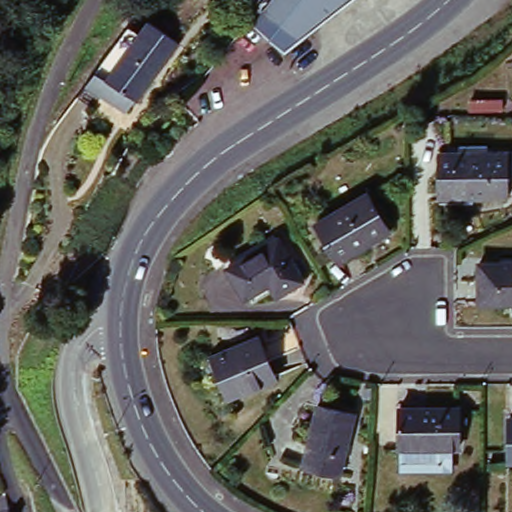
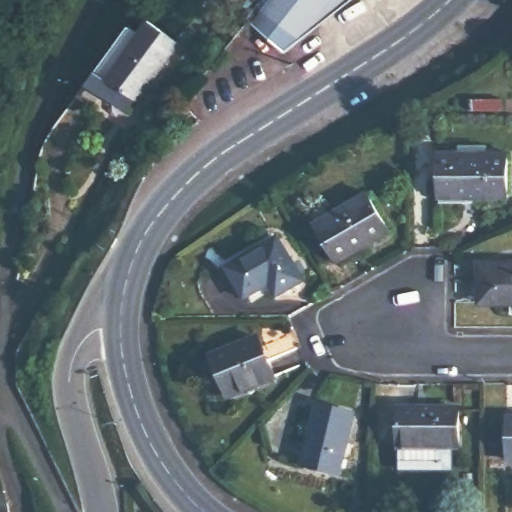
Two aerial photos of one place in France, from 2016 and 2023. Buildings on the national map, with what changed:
unchanged [(261,27),(282,0),(358,0),(290,55),(261,27)]
unchanged [(135,32),(146,40),(154,30),(166,38),(184,51),(141,110),(121,96),(114,108),(99,97),(93,93),(103,79),(133,36),(135,32)]
unchanged [(511,85),(510,96),(478,96),(479,85),(511,85)]
unchanged [(508,155),(507,199),(476,197),(475,197),(474,202),(441,200),(441,191),(440,191),(442,152),(508,155)]
unchanged [(394,234),(341,266),(318,226),(372,195),(394,234)]
unchanged [(280,293),(273,281),(244,300),(223,269),(276,234),(304,278),(280,293)]
unchanged [(512,263),(512,305),(486,304),(487,263),(512,263)]
unchanged [(34,299),(39,300),(32,308),(30,308),(34,299)]
unchanged [(264,338),(280,380),(234,398),(217,356),(264,338)]
unchanged [(323,400),(360,411),(343,472),(304,460),(323,400)]
unchanged [(441,469),(403,468),(404,447),(401,446),(402,403),(462,405),(462,406),(462,447),(455,447),(454,470),(441,469)]
unchanged [(512,419),(512,462),(511,462),(512,418),(512,419)]
unchanged [(0,512),(0,496),(6,495),(10,512),(0,512)]

